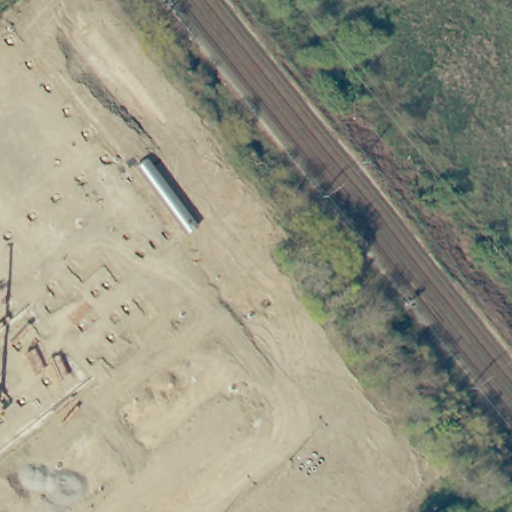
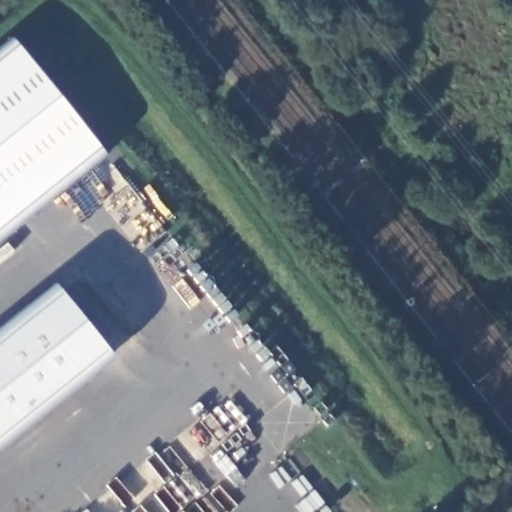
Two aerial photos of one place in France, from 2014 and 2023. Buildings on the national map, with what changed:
new [(9,37),(105,157),(0,241),(0,45),(9,37)]
new [(53,286),(113,362),(0,451),(0,329),(53,286)]

